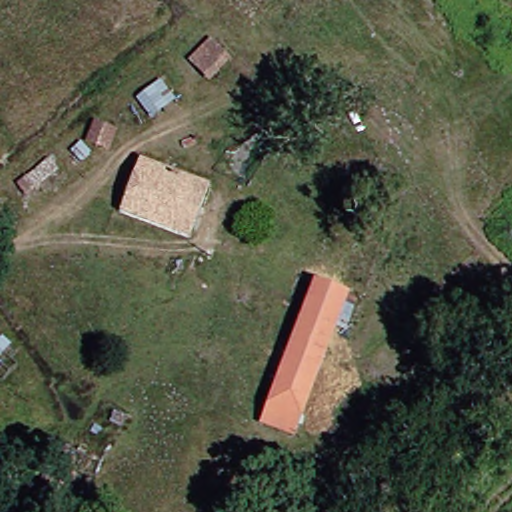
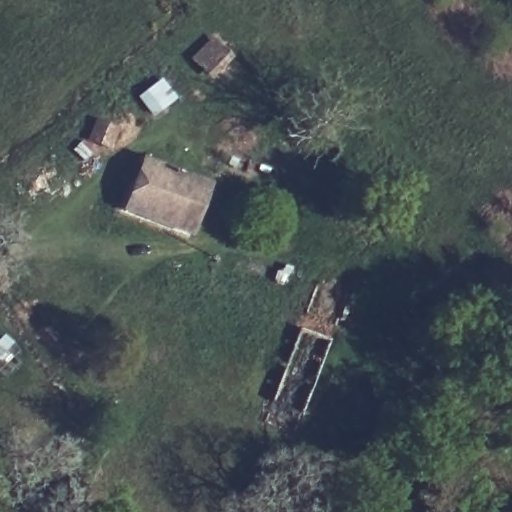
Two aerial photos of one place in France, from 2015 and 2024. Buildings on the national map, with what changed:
unchanged [(231,73),(215,89),(195,64),(212,51),(231,73)]
unchanged [(89,150),(98,131),(122,141),(112,161),(89,150)]
unchanged [(157,215),(122,204),(140,161),(173,171),(157,215)]
unchanged [(200,179),(186,224),(157,215),(173,171),(200,179)]
unchanged [(295,329),(309,282),(341,293),(325,343),(295,329)]
unchanged [(295,329),(325,343),(300,430),(263,419),(295,329)]

